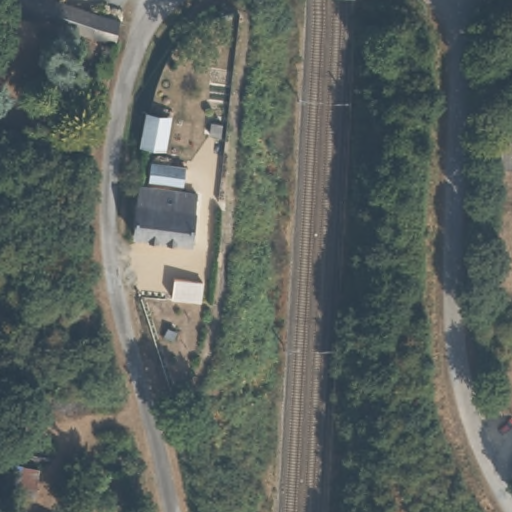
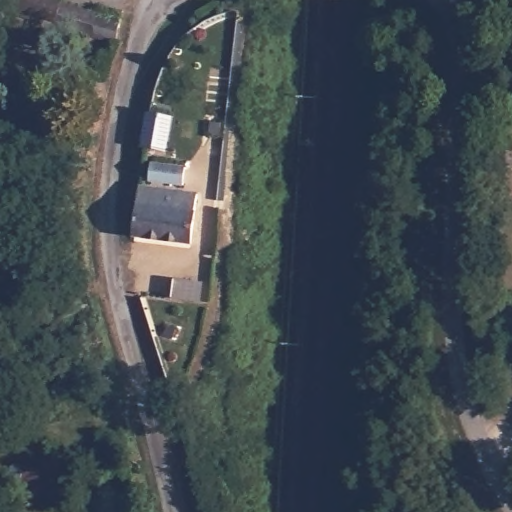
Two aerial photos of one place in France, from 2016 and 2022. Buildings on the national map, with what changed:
unchanged [(53,27),(10,14),(14,0),(44,0),(60,5),(95,15),(116,21),(114,45),(89,37),(53,27)]
unchanged [(497,135),(497,114),(512,114),(512,136),(497,135)]
unchanged [(170,120),(166,155),(136,151),(142,116),(170,120)]
unchanged [(200,140),(200,129),(210,130),(209,141),(200,140)]
unchanged [(494,175),(497,135),(512,136),(512,175),(494,175)]
unchanged [(146,185),(146,170),(183,171),(182,187),(146,185)]
unchanged [(137,192),(170,195),(165,245),(137,242),(137,192)]
unchanged [(170,195),(197,197),(192,247),(165,245),(170,195)]
unchanged [(172,300),(172,282),(200,285),(200,302),(172,300)]
unchanged [(161,342),(161,334),(169,333),(169,341),(161,342)]

